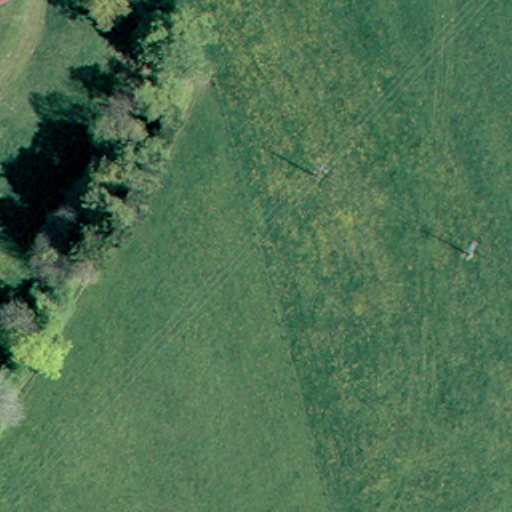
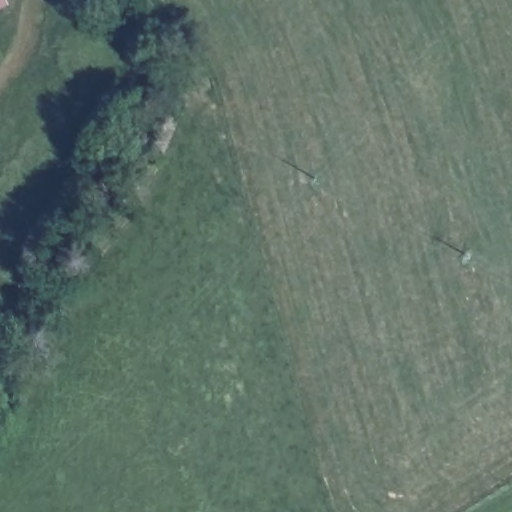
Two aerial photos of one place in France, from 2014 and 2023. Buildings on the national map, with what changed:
unchanged [(15,4),(0,12),(0,0),(13,0),(15,4)]

